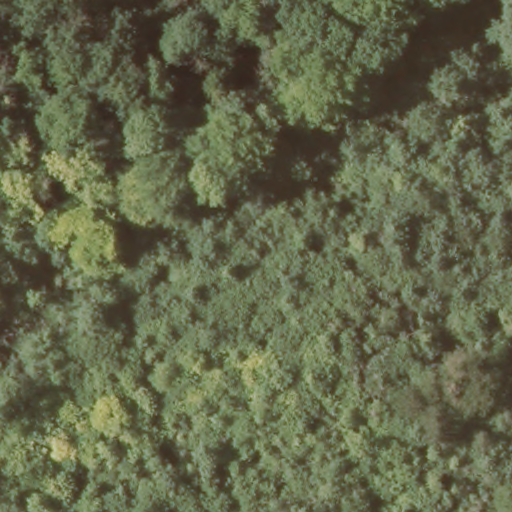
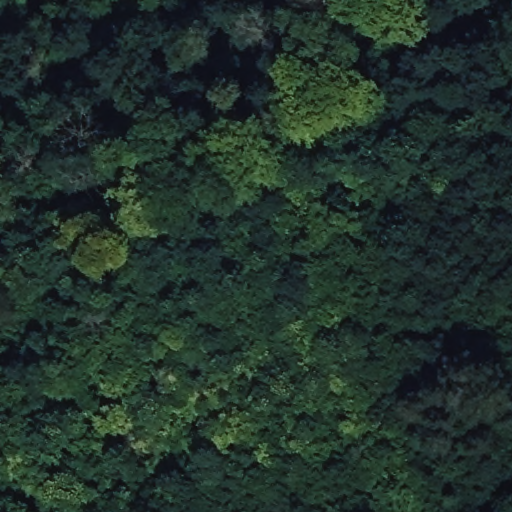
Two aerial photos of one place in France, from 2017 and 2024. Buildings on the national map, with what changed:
unchanged [(245,87),(259,80),(268,97),(254,105),(245,87)]

